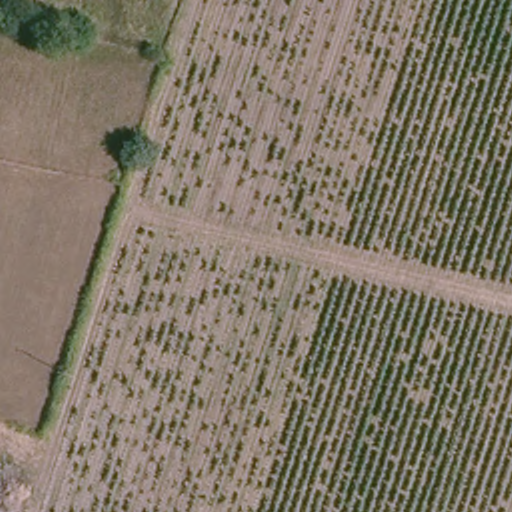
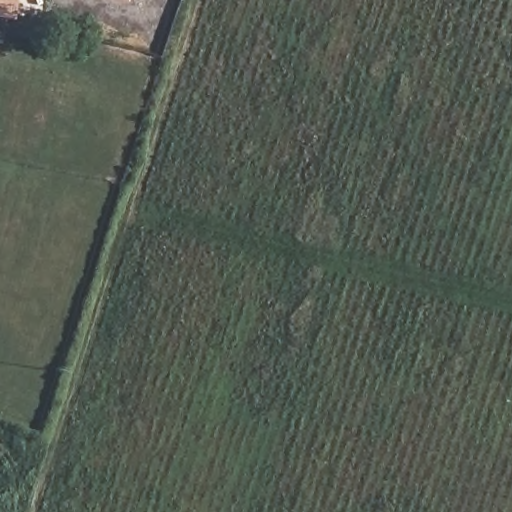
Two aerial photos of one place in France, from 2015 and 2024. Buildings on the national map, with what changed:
new [(0,17),(0,0),(17,0),(15,19),(0,17)]

